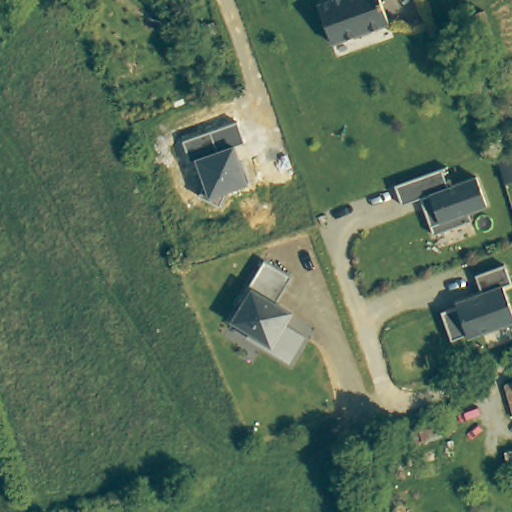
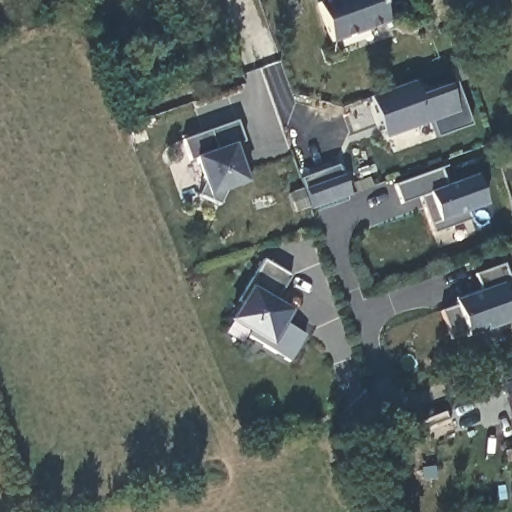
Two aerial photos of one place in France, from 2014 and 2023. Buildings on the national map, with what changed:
unchanged [(383,0),(390,21),(334,41),(320,3),(328,0),(383,0)]
unchanged [(498,45),(467,54),(454,14),(486,4),(498,45)]
new [(436,138),(431,123),(386,139),(370,98),(414,81),(419,94),(444,84),(454,79),(471,125),(436,138)]
unchanged [(199,198),(205,185),(196,160),(189,162),(183,140),(236,123),(244,142),(234,145),(246,185),(228,190),(219,206),(199,198)]
new [(310,210),(299,179),(339,164),(352,195),(310,210)]
unchanged [(452,184),(481,174),(491,202),(472,209),(474,217),(437,231),(426,202),(423,194),(404,201),(398,182),(445,165),(452,184)]
unchanged [(295,273),(279,300),(294,309),(287,320),(309,333),(293,359),(252,334),(255,329),(235,317),(245,300),(243,298),(268,257),(295,273)]
unchanged [(512,275),(512,281),(506,283),(512,300),(512,321),(472,335),(471,332),(454,338),(444,309),(460,304),(459,299),(484,290),(478,272),(507,262),(512,275)]
unchanged [(505,383),(512,380),(512,403),(505,383)]

